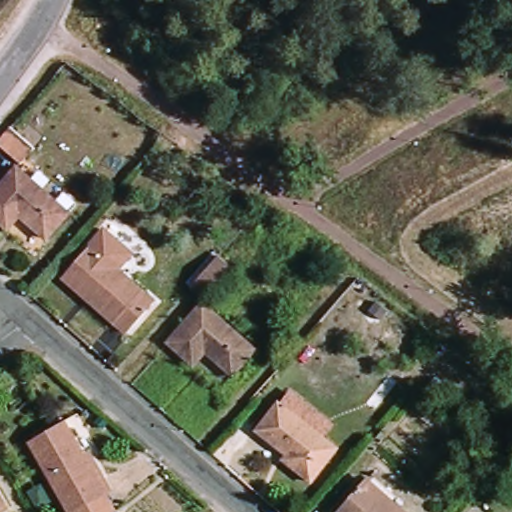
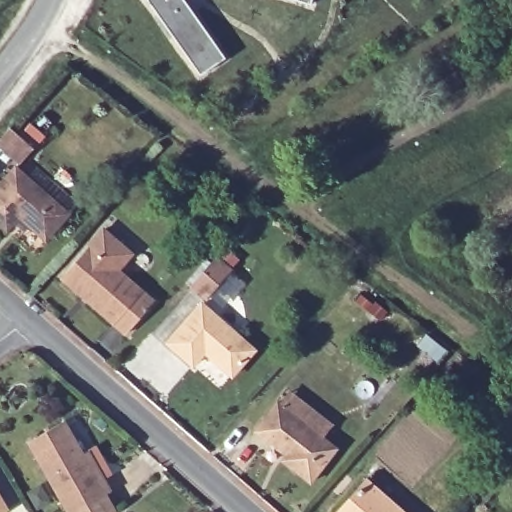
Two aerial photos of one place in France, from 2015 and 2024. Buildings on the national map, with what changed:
new [(226,56),(201,75),(148,0),(185,0),(226,56)]
new [(312,4),(297,0),(313,0),(312,4)]
unchanged [(0,146),(0,141),(9,130),(34,152),(22,165),(0,146)]
unchanged [(46,238),(20,214),(7,228),(0,222),(0,188),(16,169),(67,213),(46,238)]
unchanged [(67,274),(87,249),(109,230),(135,256),(120,276),(154,303),(130,333),(91,301),(62,279),(67,274)]
unchanged [(236,275),(211,303),(195,289),(220,261),(236,275)]
unchanged [(205,349),(194,360),(170,338),(202,303),(255,349),(233,374),(205,349)]
unchanged [(338,450),(312,482),(285,460),(288,456),(261,434),(284,406),(338,450)]
unchanged [(68,512),(29,443),(64,423),(95,480),(105,477),(112,491),(109,492),(119,511),(117,512),(68,512)]
unchanged [(398,512),(345,512),(369,485),(398,512)]
unchanged [(6,512),(0,512),(0,501),(6,512)]

